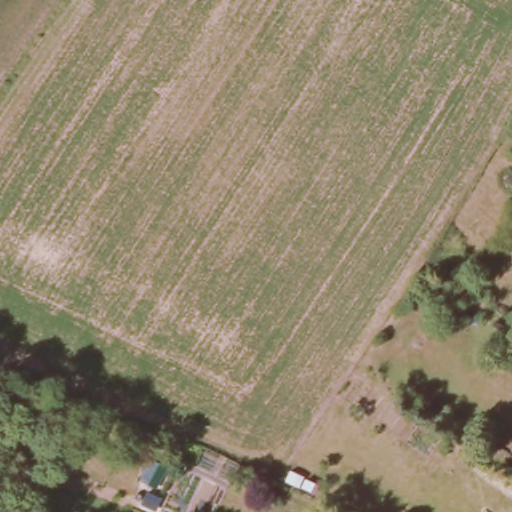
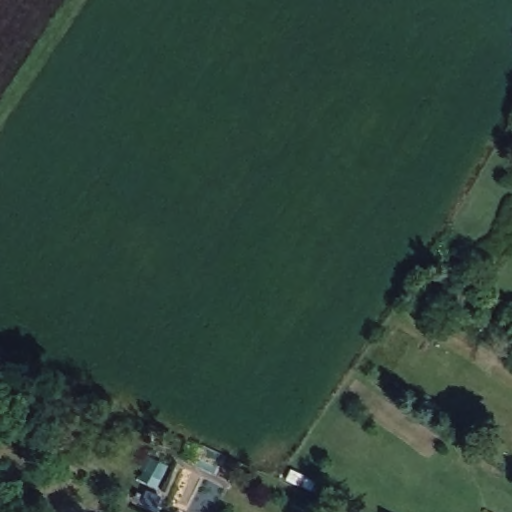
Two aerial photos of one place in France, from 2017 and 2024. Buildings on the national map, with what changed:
unchanged [(302,475),(298,485),(284,479),(289,468),(302,475)]

